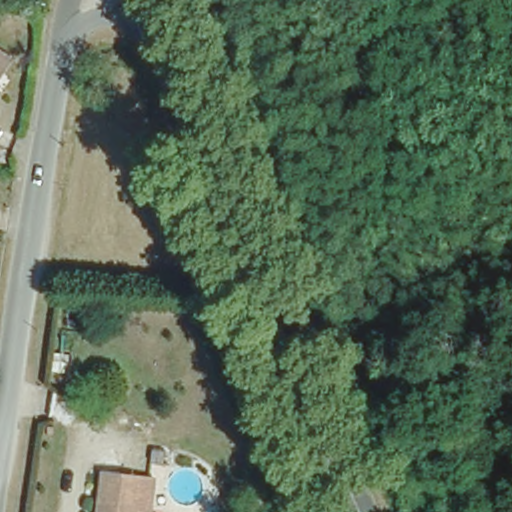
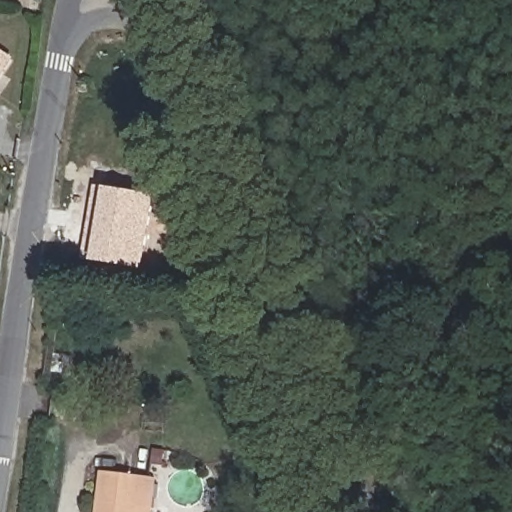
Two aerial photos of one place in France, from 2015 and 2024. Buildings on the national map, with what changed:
unchanged [(0,67),(0,56),(5,59),(0,67)]
new [(82,260),(95,185),(105,187),(157,195),(144,271),(92,263),(82,260)]
unchanged [(97,471),(147,476),(142,512),(92,512),(97,471)]

